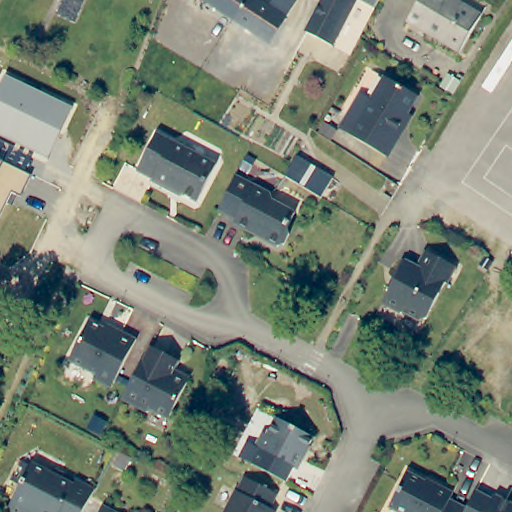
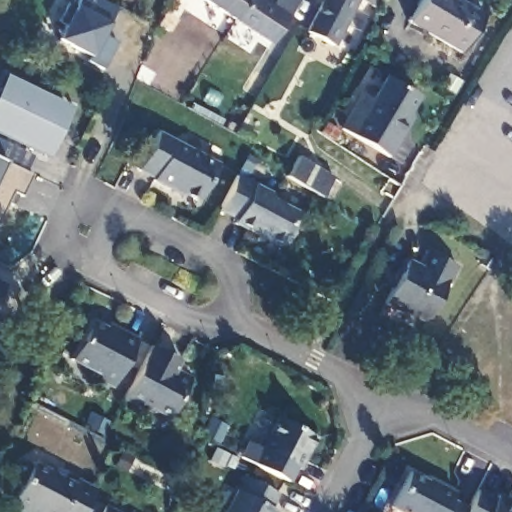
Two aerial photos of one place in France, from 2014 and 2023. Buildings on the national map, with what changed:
new [(117,44),(104,69),(91,59),(57,40),(75,6),(78,0),(98,0),(115,10),(102,33),(117,44)]
unchanged [(198,0),(297,0),(270,45),(198,0)]
unchanged [(384,0),(378,11),(360,2),(342,36),(335,50),(308,36),(322,9),(327,0),(384,0)]
unchanged [(408,22),(422,0),(460,0),(460,3),(483,17),(462,54),(408,22)]
unchanged [(0,92),(9,75),(72,106),(47,159),(0,136),(0,92)]
unchanged [(413,97),(389,136),(393,139),(382,157),(335,127),(357,93),(367,100),(381,77),(413,97)]
unchanged [(157,130),(217,160),(197,199),(171,184),(169,187),(151,177),(152,175),(137,167),(157,130)]
unchanged [(286,174),(297,154),(333,175),(321,195),(286,174)]
unchanged [(31,176),(22,196),(12,191),(0,217),(0,161),(3,162),(31,176)]
unchanged [(237,172),(271,190),(273,197),(296,210),(288,224),(291,231),(285,242),(278,244),(267,237),(266,231),(255,225),(252,230),(235,220),(237,216),(219,207),(237,172)]
unchanged [(396,282),(393,281),(403,262),(417,269),(426,254),(457,270),(447,286),(446,285),(427,320),(418,323),(403,315),(400,316),(382,307),(396,282)]
unchanged [(0,292),(0,282),(4,283),(0,292)]
unchanged [(117,337),(121,331),(137,340),(112,389),(94,379),(96,375),(69,360),(89,321),(117,337)]
unchanged [(147,347),(176,362),(169,375),(184,383),(165,419),(150,411),(142,413),(119,400),(147,347)]
unchanged [(87,423),(95,410),(107,417),(101,430),(87,423)]
unchanged [(267,435),(276,418),(313,438),(297,471),(292,468),(285,482),(247,463),(263,433),(267,435)]
unchanged [(85,512),(13,512),(7,509),(20,486),(11,481),(21,462),(29,467),(32,463),(73,485),(76,480),(96,491),(85,512)]
unchanged [(464,512),(394,512),(391,510),(410,474),(452,493),(449,501),(466,508),(464,512)]
unchanged [(238,491),(246,477),(277,494),(270,508),(276,511),(276,512),(225,512),(237,490),(238,491)]
unchanged [(494,496),(512,505),(512,512),(464,512),(466,508),(475,491),(492,500),(494,496)]
unchanged [(112,512),(100,512),(103,507),(112,512)]

